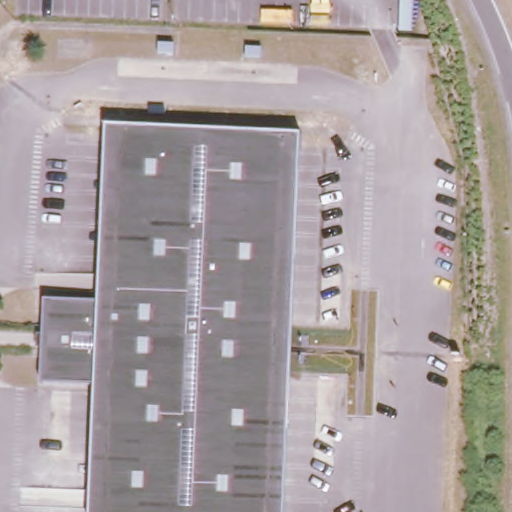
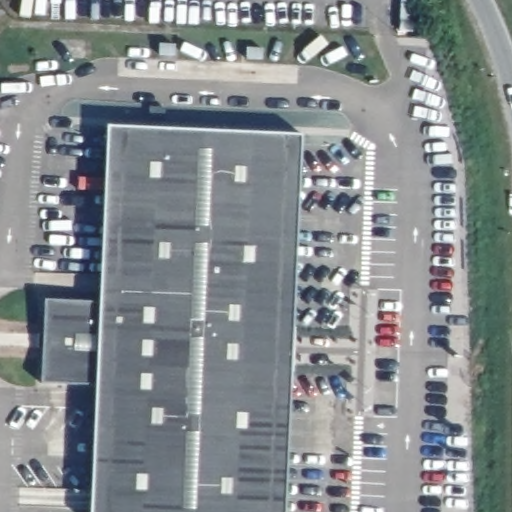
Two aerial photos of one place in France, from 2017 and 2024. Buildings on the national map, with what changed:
unchanged [(40,384),(44,303),(99,307),(110,127),(300,134),(284,512),(91,512),(96,386),(40,384)]

